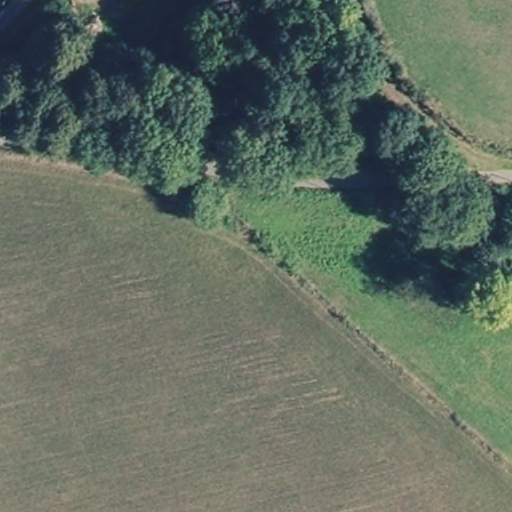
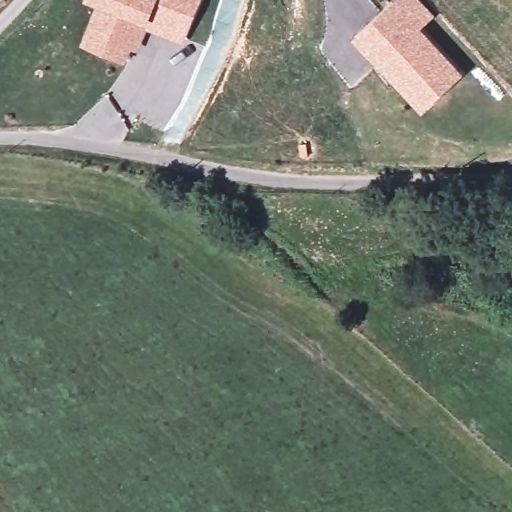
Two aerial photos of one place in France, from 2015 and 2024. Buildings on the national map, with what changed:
new [(182,43),(147,30),(138,51),(133,48),(126,64),(81,44),(96,4),(88,0),(201,0),(182,43)]
new [(390,73),(361,41),(396,9),(405,0),(413,0),(430,19),(417,32),(459,77),(441,93),(423,109),(390,73)]

